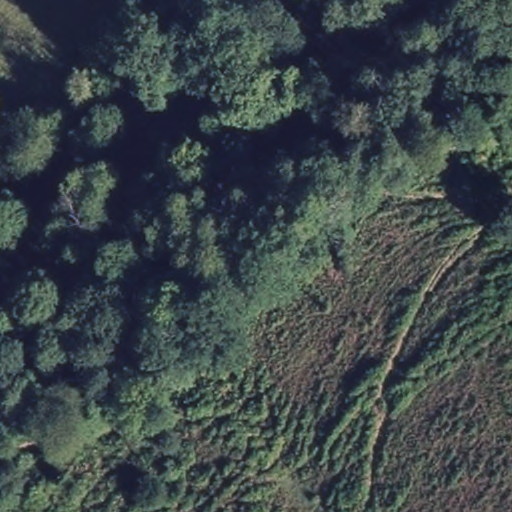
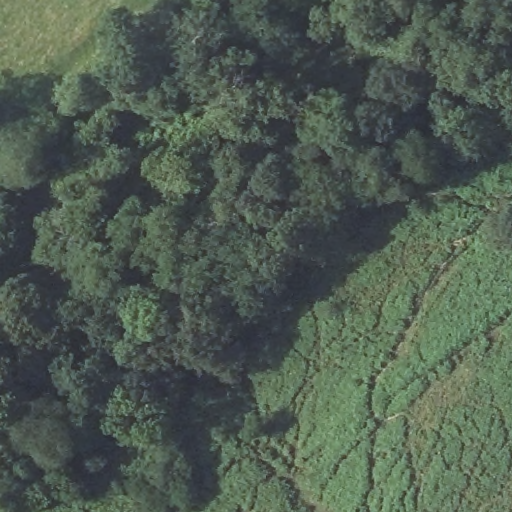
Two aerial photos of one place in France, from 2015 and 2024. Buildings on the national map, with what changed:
[]

